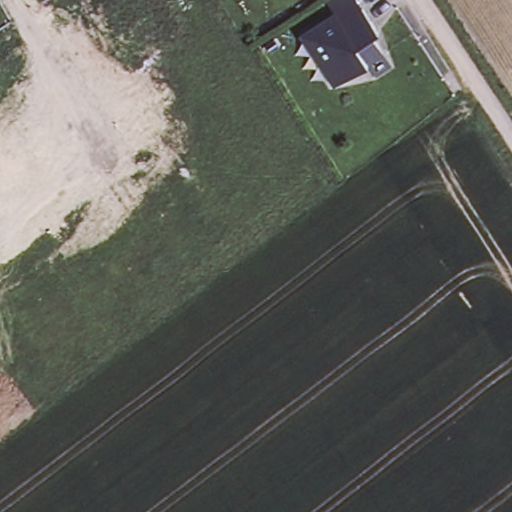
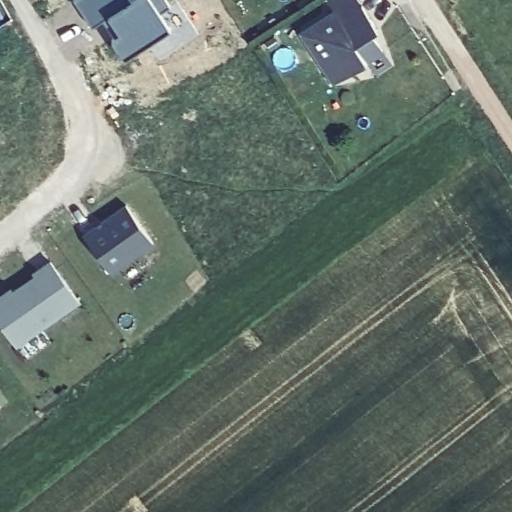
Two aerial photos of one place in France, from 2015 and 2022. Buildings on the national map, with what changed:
new [(74,0),(129,0),(132,5),(139,0),(163,0),(169,10),(157,17),(170,36),(125,65),(109,44),(119,38),(108,20),(92,31),(72,1),(74,0)]
unchanged [(307,38),(310,33),(338,15),(329,1),(330,0),(359,0),(366,10),(382,33),(375,37),(387,54),(347,80),(337,85),(314,49),(307,38)]
new [(80,235),(125,202),(155,242),(110,274),(80,235)]
new [(0,325),(0,297),(52,261),(80,302),(16,347),(0,325)]

